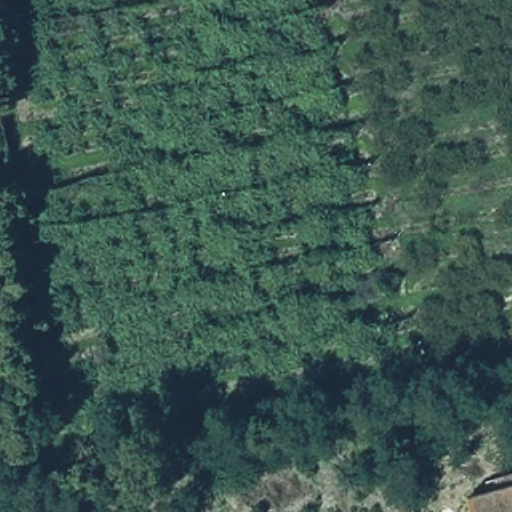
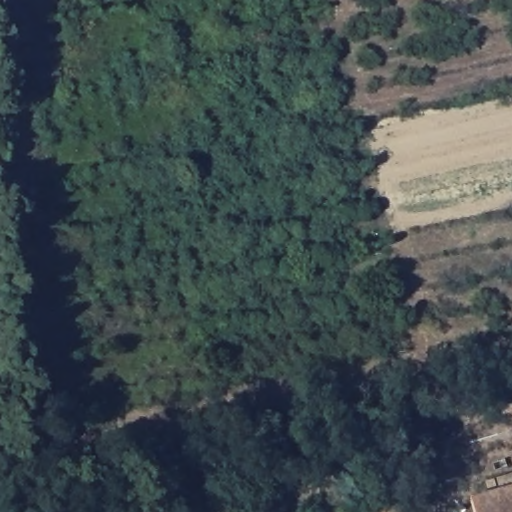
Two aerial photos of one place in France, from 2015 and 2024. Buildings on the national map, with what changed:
unchanged [(464,499),(512,486),(512,512),(468,512),(464,499)]

